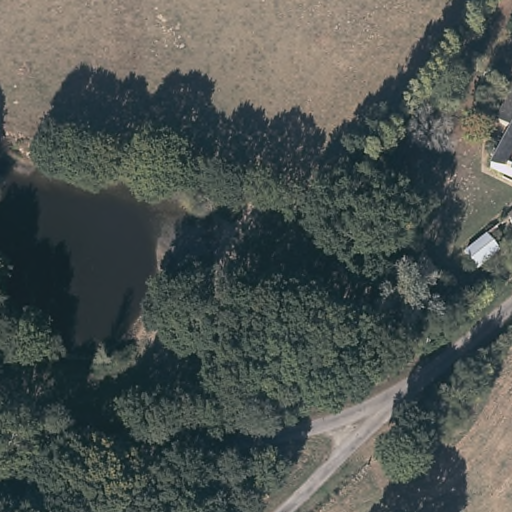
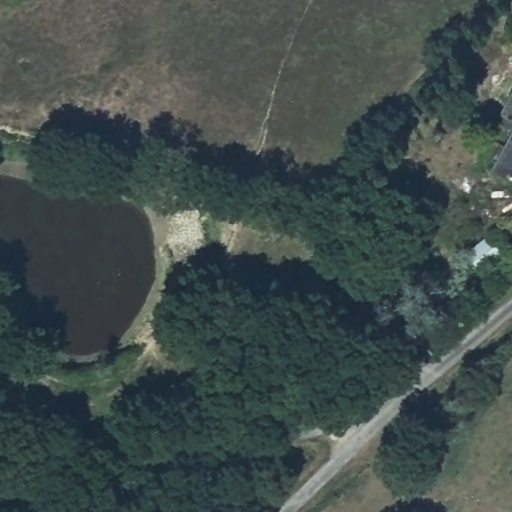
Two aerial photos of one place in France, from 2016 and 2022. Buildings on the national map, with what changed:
unchanged [(512,96),(512,126),(500,121),(512,96)]
unchanged [(512,132),(512,174),(495,166),(512,132)]
unchanged [(512,219),(508,215),(512,211),(512,219)]
unchanged [(477,269),(464,253),(486,235),(500,251),(477,269)]

